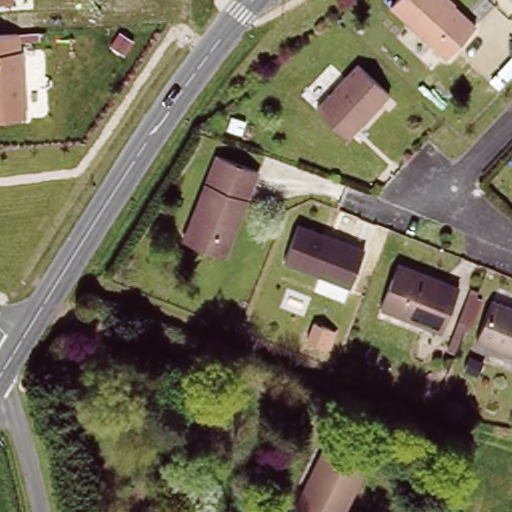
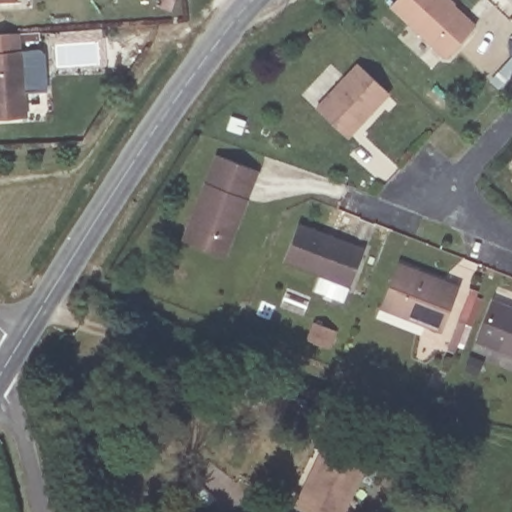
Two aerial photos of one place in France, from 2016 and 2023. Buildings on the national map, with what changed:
unchanged [(386,5),(391,0),(450,0),(418,35),(386,5)]
unchanged [(450,0),(476,25),(443,60),(418,35),(450,0)]
unchanged [(21,31),(26,115),(0,118),(0,33),(21,31)]
unchanged [(318,109),(354,70),(358,66),(363,70),(388,94),(384,98),(348,137),(318,109)]
unchanged [(193,218),(226,147),(266,166),(223,258),(189,243),(183,239),(193,218)]
unchanged [(347,283),(286,261),(299,228),(359,250),(347,283)]
unchanged [(444,332),(383,310),(398,268),(459,290),(444,332)]
unchanged [(492,302),(509,308),(512,301),(512,355),(478,343),(492,302)]
unchanged [(336,328),(329,346),(306,338),(314,320),(336,328)]
unchanged [(301,512),(288,505),(298,486),(308,492),(336,441),(369,459),(339,512),(301,512)]

